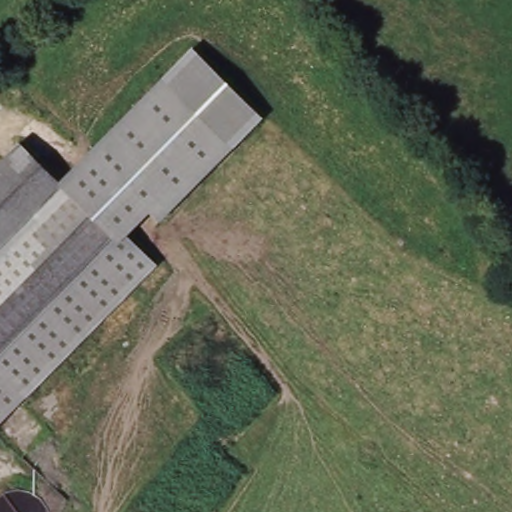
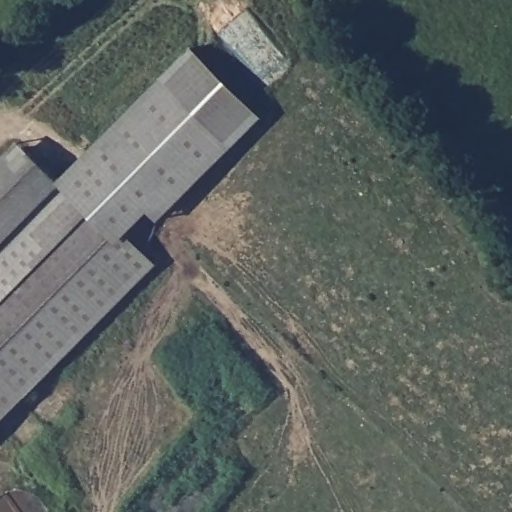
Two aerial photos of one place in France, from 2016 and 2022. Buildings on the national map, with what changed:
unchanged [(162,221),(136,195),(111,220),(68,176),(194,50),(263,120),(162,221)]
unchanged [(0,162),(20,142),(61,183),(0,245),(0,162)]
unchanged [(111,220),(155,263),(0,420),(0,245),(61,183),(68,176),(111,220)]

